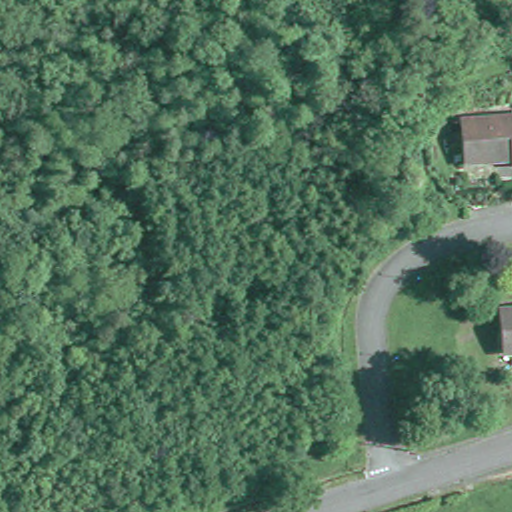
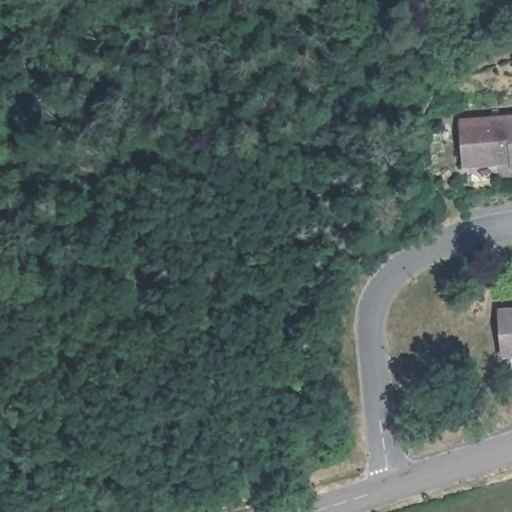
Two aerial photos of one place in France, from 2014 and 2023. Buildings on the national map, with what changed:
unchanged [(512,119),(512,163),(465,166),(462,123),(512,119)]
unchanged [(502,351),(499,311),(512,310),(512,350),(502,351)]

